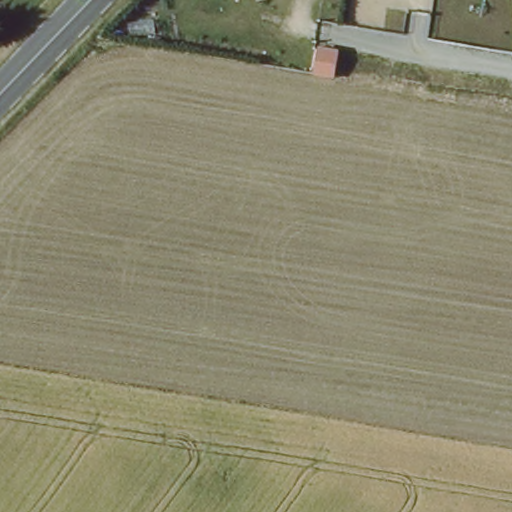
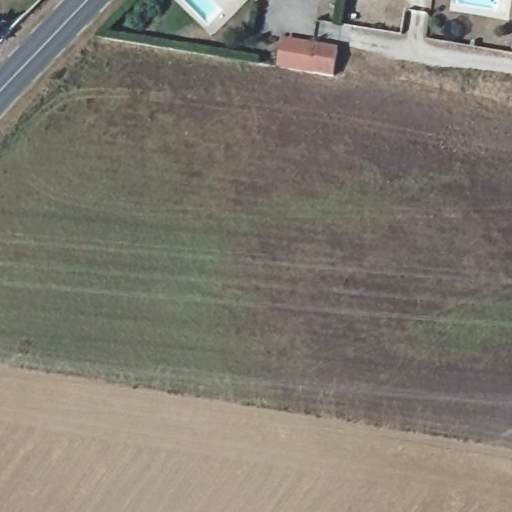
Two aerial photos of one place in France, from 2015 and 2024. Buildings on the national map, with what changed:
new [(339,48),(334,79),(277,68),(281,39),(339,48)]

